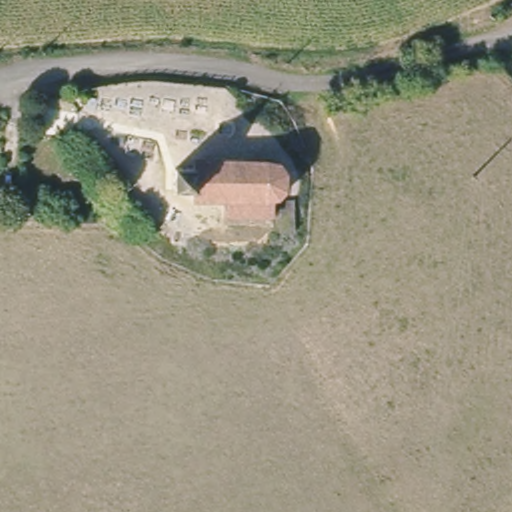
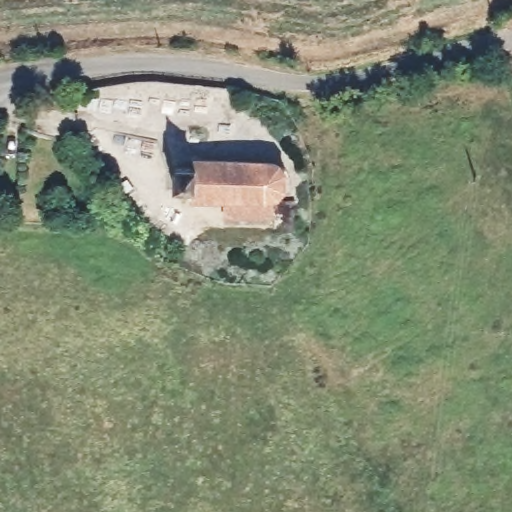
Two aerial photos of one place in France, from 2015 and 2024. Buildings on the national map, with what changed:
unchanged [(275,155),(287,164),(290,172),(286,185),(273,193),(273,212),(228,212),(227,194),(196,194),(197,155),(275,155)]

